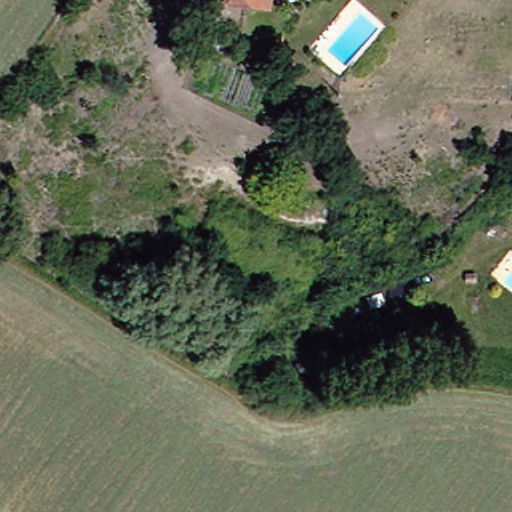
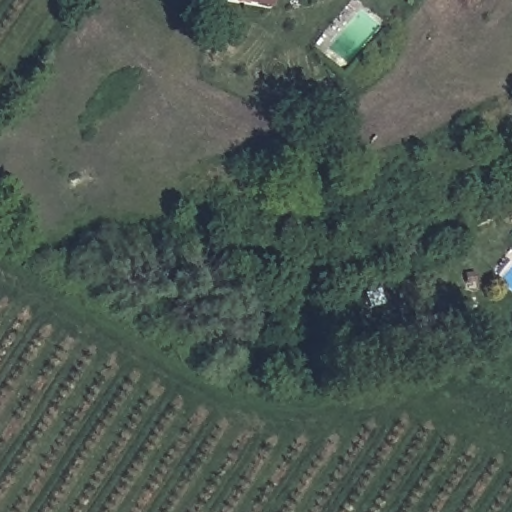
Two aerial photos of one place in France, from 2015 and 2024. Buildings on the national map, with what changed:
unchanged [(257,10),(232,6),(232,0),(273,0),(271,13),(257,10)]

